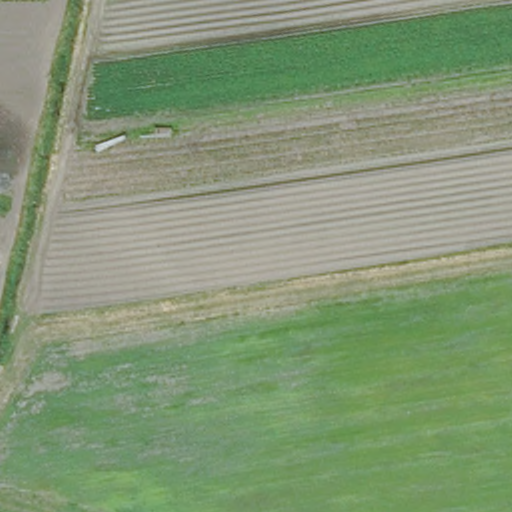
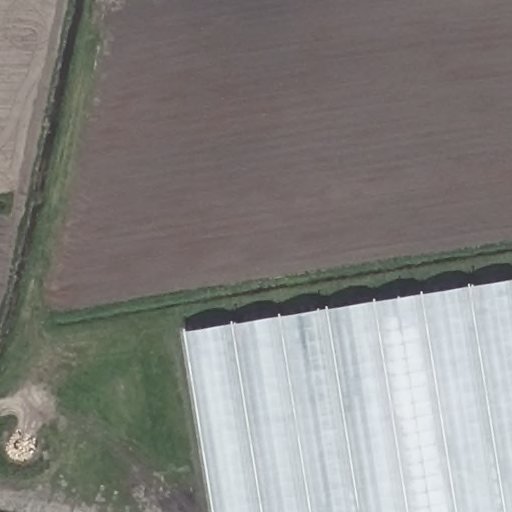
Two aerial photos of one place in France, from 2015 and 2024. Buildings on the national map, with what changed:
new [(512,512),(215,512),(186,333),(512,280),(512,512)]

